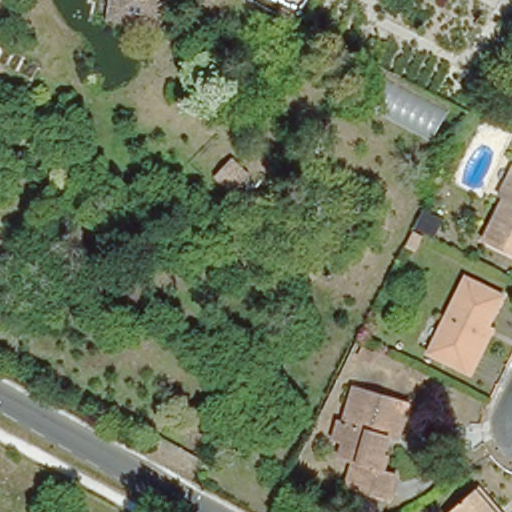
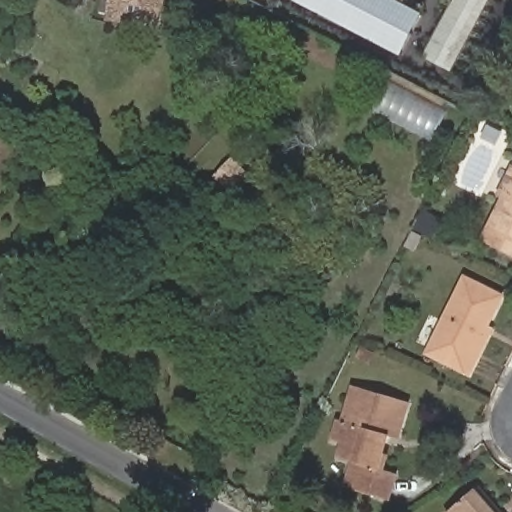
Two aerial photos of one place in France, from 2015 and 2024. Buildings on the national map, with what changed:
unchanged [(106,18),(108,0),(162,0),(159,25),(153,25),(106,18)]
new [(413,34),(401,56),(292,0),(397,0),(423,14),(413,34)]
new [(423,58),(453,0),(490,0),(451,73),(423,58)]
demolished [(499,0),(512,0),(512,1),(510,5),(499,0)]
new [(234,159),(250,174),(233,194),(216,179),(234,159)]
unchanged [(475,244),(495,203),(491,201),(505,170),(512,174),(512,262),(475,244)]
unchanged [(477,332),(481,334),(461,377),(420,358),(456,282),(492,299),(477,332)]
unchanged [(394,442),(383,439),(374,474),(392,479),(385,504),(342,492),(349,466),(335,462),(339,447),(328,444),(334,424),(339,426),(350,391),(404,407),(394,442)]
unchanged [(488,512),(445,512),(471,491),(488,512)]

